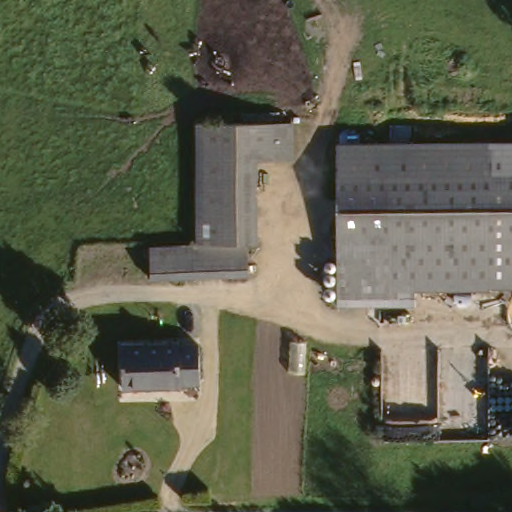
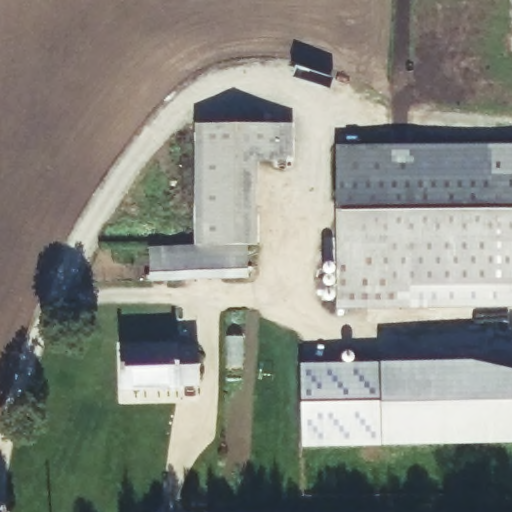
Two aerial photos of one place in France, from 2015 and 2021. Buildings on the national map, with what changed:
unchanged [(298,154),(251,155),(254,271),(150,275),(149,247),(196,246),(192,124),(224,124),(296,121),(298,154)]
unchanged [(397,325),(339,326),(336,150),(512,147),(512,286),(396,286),(397,325)]
unchanged [(202,383),(122,382),(123,342),(203,344),(202,383)]
new [(475,360),(512,369),(512,444),(383,445),(303,448),(301,362),(380,361),(475,360)]

